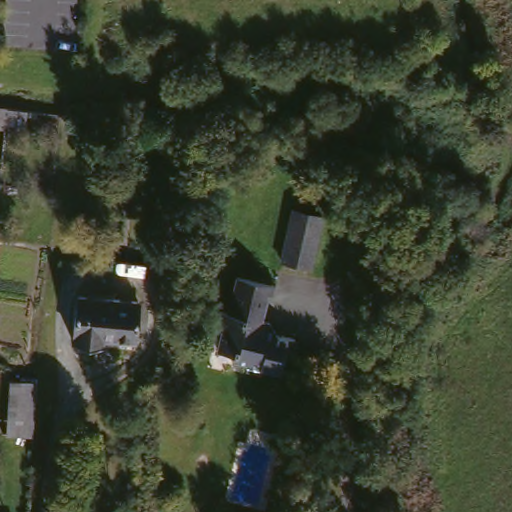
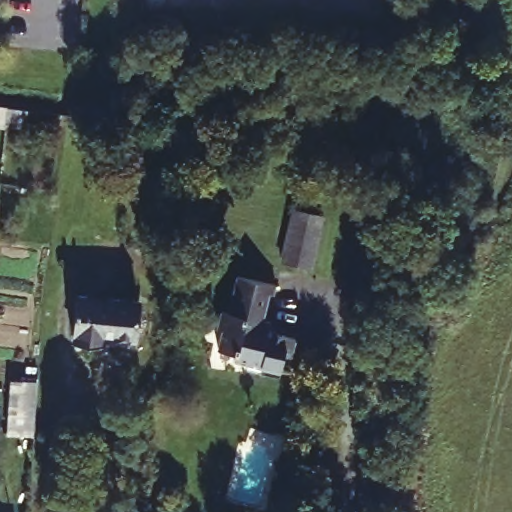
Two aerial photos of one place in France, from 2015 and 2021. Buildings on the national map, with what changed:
unchanged [(5,126),(0,126),(0,114),(6,115),(27,117),(25,129),(5,126)]
unchanged [(283,266),(289,222),(290,215),(320,219),(319,226),(313,271),(283,266)]
unchanged [(264,282),(262,292),(258,291),(254,317),(261,317),(269,329),(286,332),(283,350),(275,348),(273,365),(255,362),(254,368),(245,367),(238,366),(239,360),(225,357),(226,352),(208,348),(211,328),(207,327),(210,310),(218,311),(224,275),(259,281),(264,282)]
unchanged [(139,300),(135,347),(74,342),(79,295),(139,300)]
unchanged [(34,419),(33,437),(7,434),(9,417),(34,419)]

